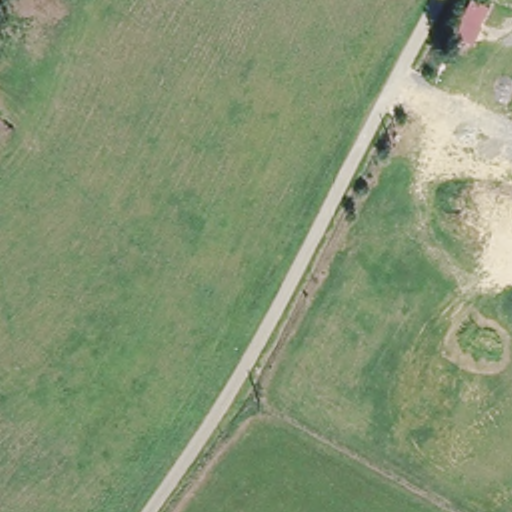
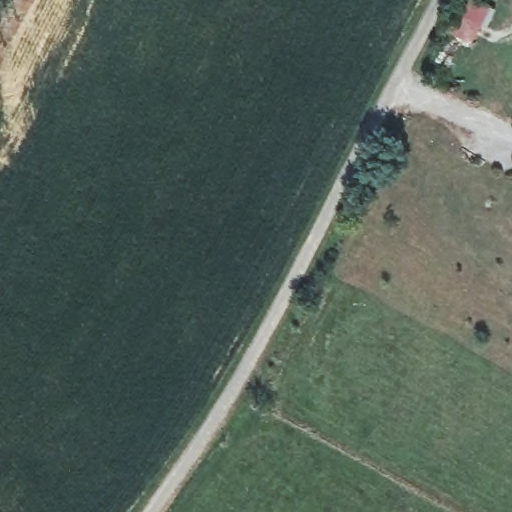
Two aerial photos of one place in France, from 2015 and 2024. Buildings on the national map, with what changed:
unchanged [(472,43),(449,31),(464,0),(480,0),(492,6),(472,43)]

